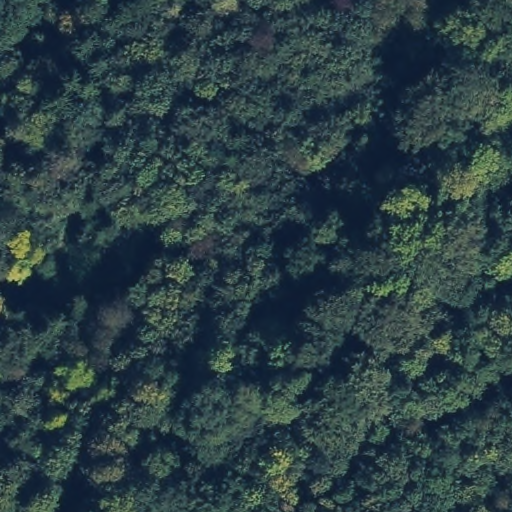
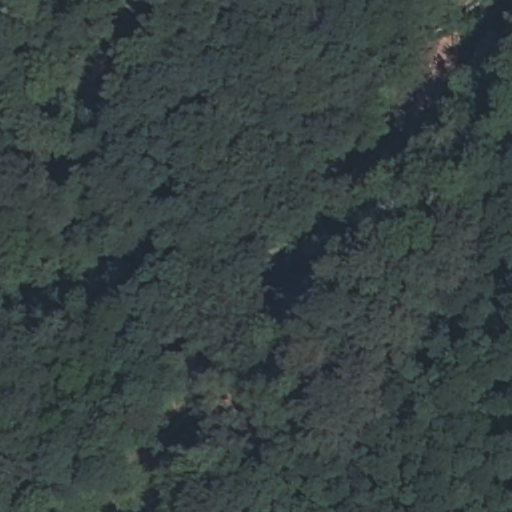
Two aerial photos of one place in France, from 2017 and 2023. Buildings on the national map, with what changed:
unchanged [(29,353),(1,364),(0,361),(0,333),(17,326),(29,353)]

